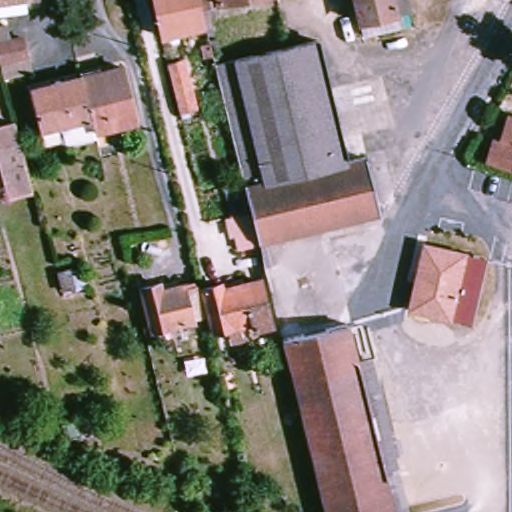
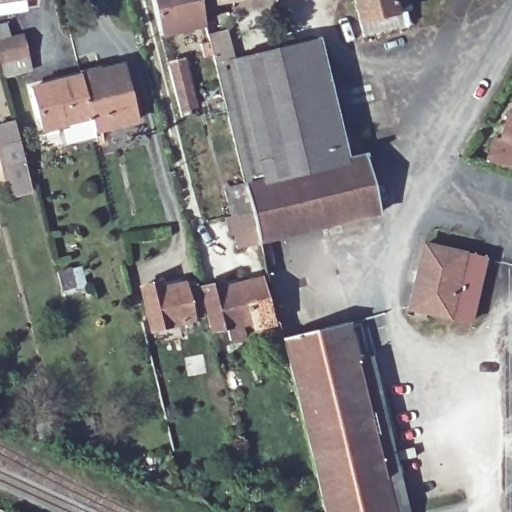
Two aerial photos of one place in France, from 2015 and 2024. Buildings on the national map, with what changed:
unchanged [(0,7),(0,0),(40,0),(40,1),(0,7)]
unchanged [(206,28),(160,40),(150,0),(201,0),(202,9),(206,28)]
unchanged [(253,0),(202,9),(201,0),(253,0)]
unchanged [(393,0),(393,1),(399,0),(403,0),(404,9),(360,19),(356,0),(393,0)]
unchanged [(2,61),(0,51),(0,25),(7,24),(10,39),(22,36),(27,55),(30,71),(6,77),(2,61)]
unchanged [(234,238),(229,238),(225,222),(250,216),(215,69),(316,44),(342,148),(361,144),(379,217),(257,245),(257,248),(237,253),(234,238)]
unchanged [(197,112),(190,114),(191,120),(182,123),(169,69),(186,65),(197,112)]
unchanged [(90,117),(80,76),(122,66),(135,120),(94,130),(90,117)]
unchanged [(90,117),(42,129),(32,87),(80,76),(90,117)]
unchanged [(0,154),(0,126),(15,122),(33,191),(11,197),(0,154)]
unchanged [(492,165),(498,144),(504,147),(512,123),(512,171),(492,165)]
unchanged [(470,322),(409,307),(424,244),(485,259),(470,322)]
unchanged [(271,327),(254,332),(253,330),(247,332),(246,327),(240,329),(244,342),(230,346),(227,332),(214,334),(204,294),(221,289),(223,294),(260,284),(271,327)]
unchanged [(189,326),(190,332),(185,333),(184,327),(151,334),(141,292),(160,288),(162,292),(182,288),(184,290),(196,288),(205,321),(189,326)]
unchanged [(358,362),(371,358),(409,512),(323,512),(281,339),(350,322),(358,362)]
unchanged [(55,436),(49,437),(47,432),(38,434),(36,425),(51,422),(55,436)]

